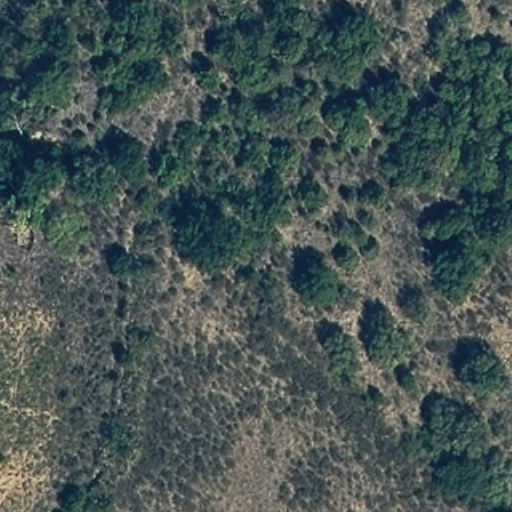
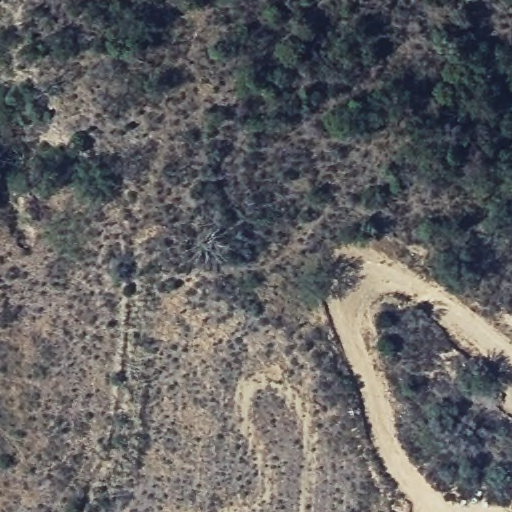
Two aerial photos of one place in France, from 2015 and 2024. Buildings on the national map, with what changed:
[]

